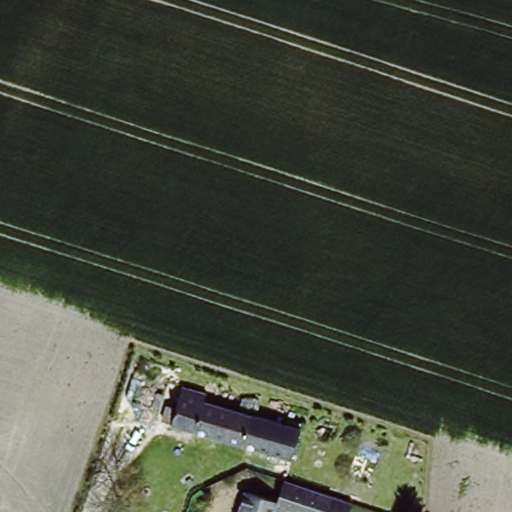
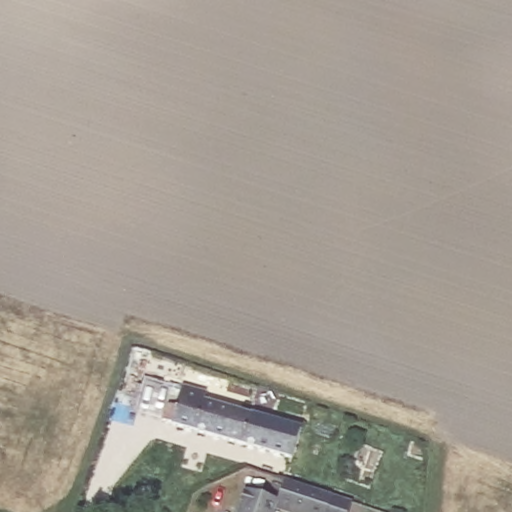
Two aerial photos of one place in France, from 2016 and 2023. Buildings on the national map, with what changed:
unchanged [(304,420),(294,452),(176,421),(185,389),(187,381),(210,387),(207,394),(304,420)]
unchanged [(293,512),(267,504),(270,494),(277,473),(326,488),(342,493),(336,512),(293,512)]
unchanged [(270,494),(267,504),(265,512),(233,512),(242,484),(270,494)]

